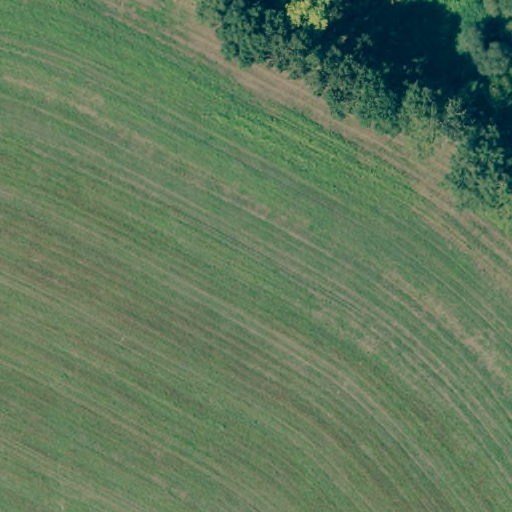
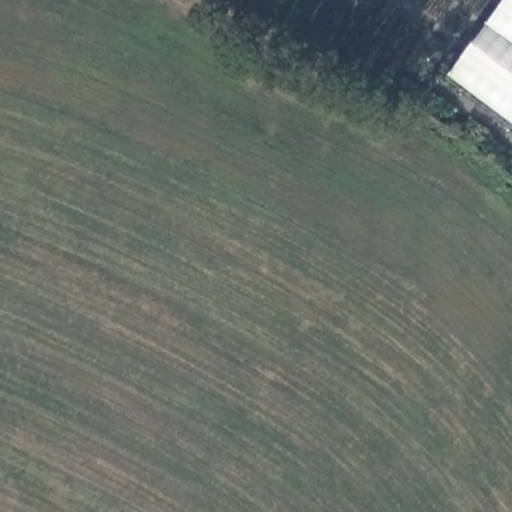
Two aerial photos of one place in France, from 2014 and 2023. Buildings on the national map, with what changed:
new [(512,0),(512,121),(450,74),(505,0),(512,0)]

